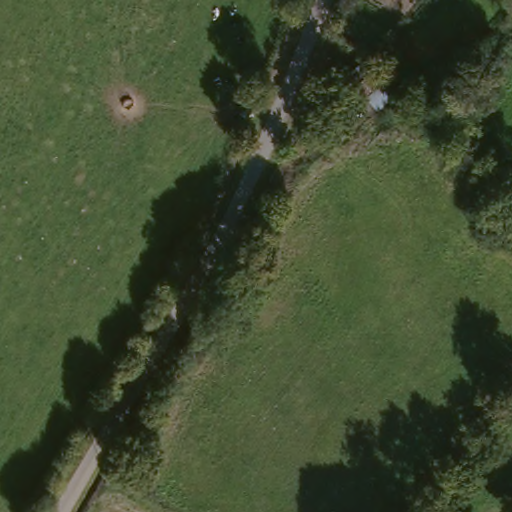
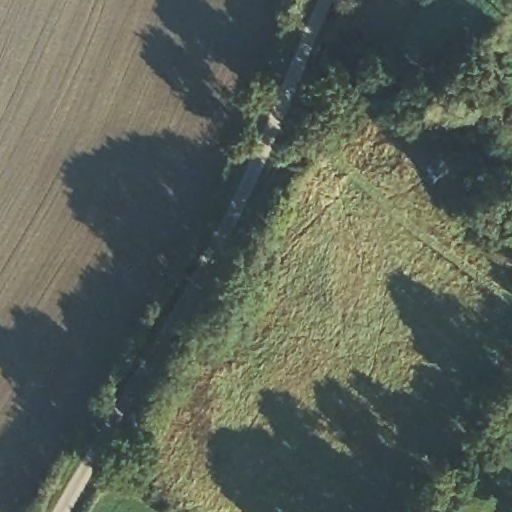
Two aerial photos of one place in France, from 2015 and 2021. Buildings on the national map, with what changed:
unchanged [(386,106),(354,71),(374,55),(407,87),(386,106)]

